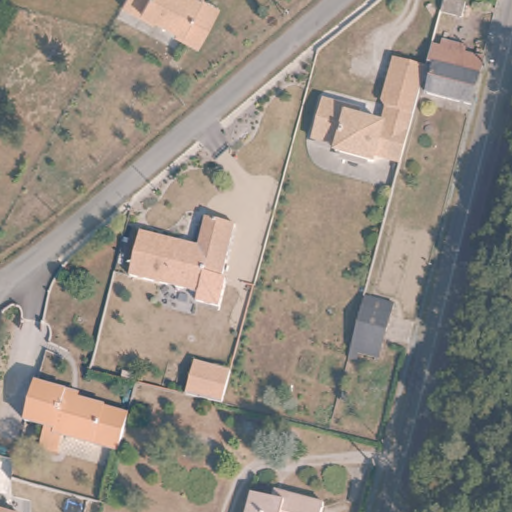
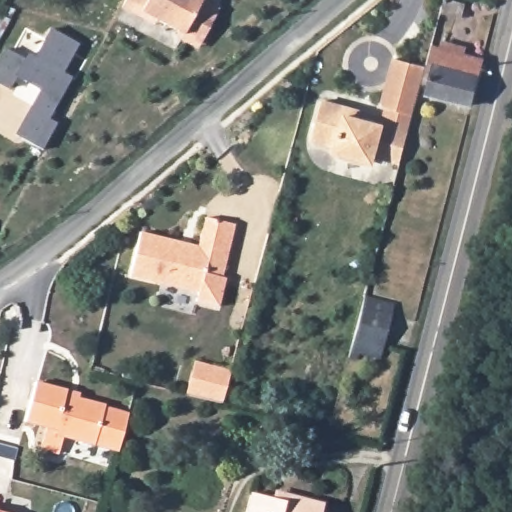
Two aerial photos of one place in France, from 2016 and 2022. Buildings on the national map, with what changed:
unchanged [(189,37),(130,4),(133,0),(210,0),(189,37)]
unchanged [(462,16),(442,10),(444,0),(466,0),(462,16)]
new [(40,90),(15,75),(8,87),(0,83),(0,56),(4,50),(23,60),(26,54),(33,58),(49,29),(77,43),(60,74),(69,79),(46,119),(57,125),(42,150),(15,136),(40,90)]
unchanged [(485,57),(473,103),(436,92),(440,76),(426,71),(427,68),(433,42),(485,57)]
unchanged [(426,71),(410,134),(402,165),(376,157),(375,164),(337,155),(338,149),(313,142),(322,102),(350,110),(349,117),(383,126),(388,110),(384,103),(395,60),(427,68),(426,71)]
unchanged [(196,247),(203,217),(233,223),(221,276),(225,277),(218,306),(197,301),(199,292),(129,277),(139,233),(196,247)]
unchanged [(394,313),(385,350),(356,343),(365,307),(394,313)]
unchanged [(221,403),(185,395),(194,362),(230,371),(221,403)]
unchanged [(111,408),(111,411),(132,416),(123,451),(58,436),(60,428),(30,422),(38,383),(71,391),(70,398),(111,408)]
unchanged [(327,512),(249,512),(254,494),(283,500),(285,493),(330,502),(327,512)]

